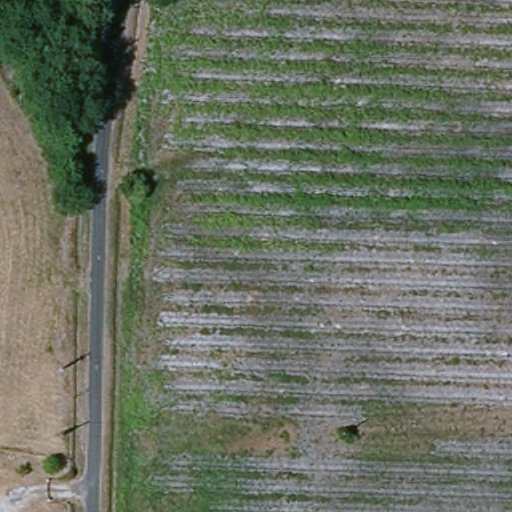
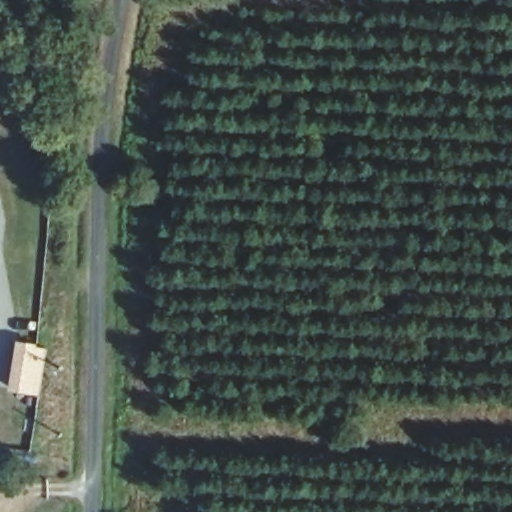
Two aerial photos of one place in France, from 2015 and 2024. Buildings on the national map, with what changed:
new [(18,341),(46,347),(38,396),(9,391),(18,341)]

